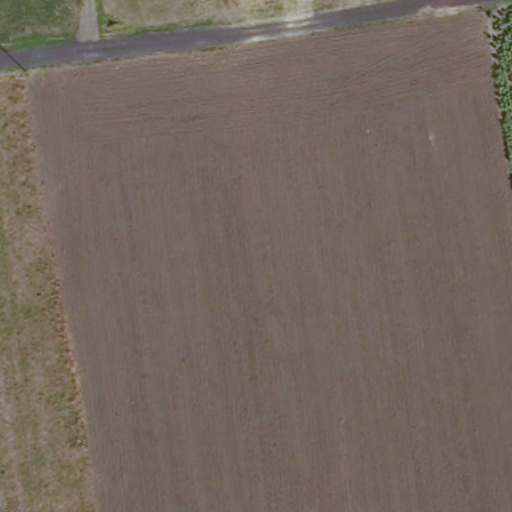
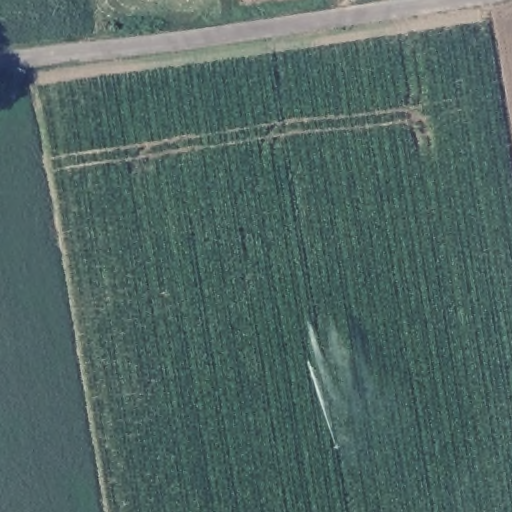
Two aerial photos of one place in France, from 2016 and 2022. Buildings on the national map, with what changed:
[]

